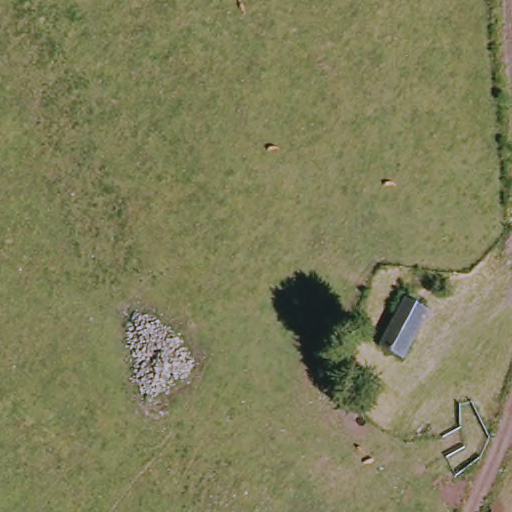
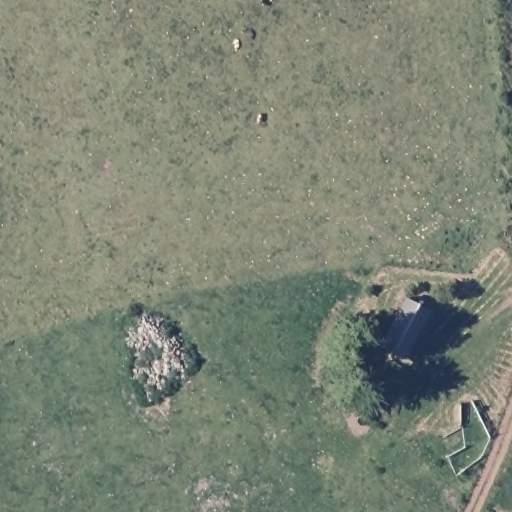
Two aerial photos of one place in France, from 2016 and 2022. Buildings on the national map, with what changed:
unchanged [(433,310),(406,361),(376,345),(404,296),(433,310)]

